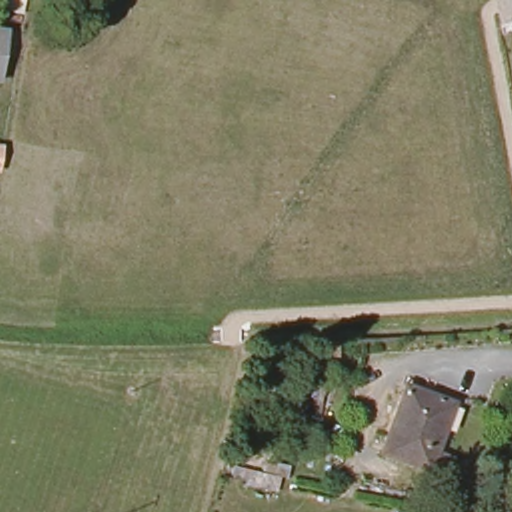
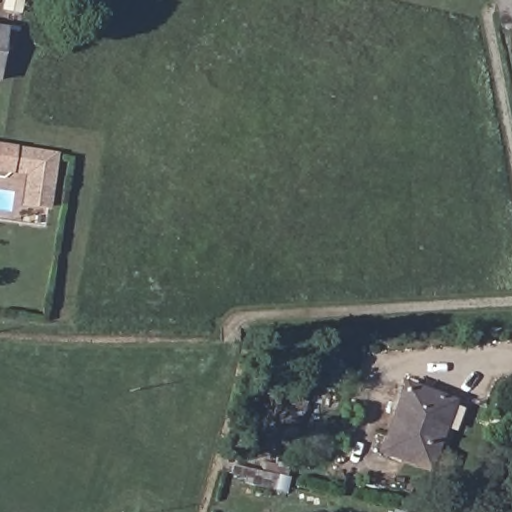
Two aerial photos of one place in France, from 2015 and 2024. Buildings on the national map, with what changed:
unchanged [(1,7),(3,0),(26,0),(23,11),(1,7)]
unchanged [(0,67),(0,24),(6,25),(0,67)]
new [(12,174),(0,172),(0,143),(16,145),(58,152),(51,209),(21,205),(25,175),(12,174)]
unchanged [(445,472),(427,465),(428,463),(388,450),(379,447),(403,379),(451,395),(434,444),(433,445),(452,451),(445,472)]

